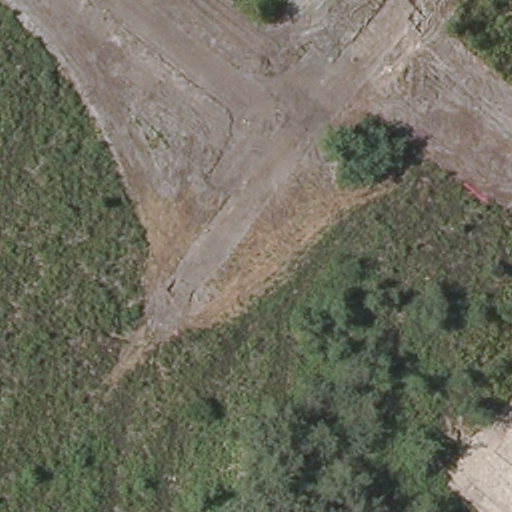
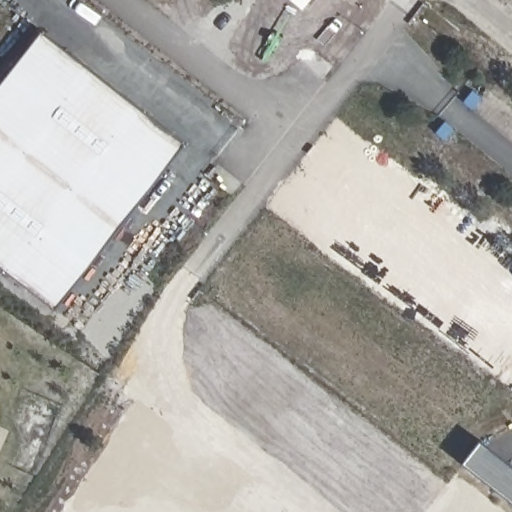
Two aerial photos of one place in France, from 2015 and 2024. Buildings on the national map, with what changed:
new [(311,0),(304,9),(293,0),(311,0)]
new [(0,263),(0,87),(43,31),(186,143),(59,309),(0,263)]
new [(463,463),(481,441),(512,466),(512,502),(463,463)]

